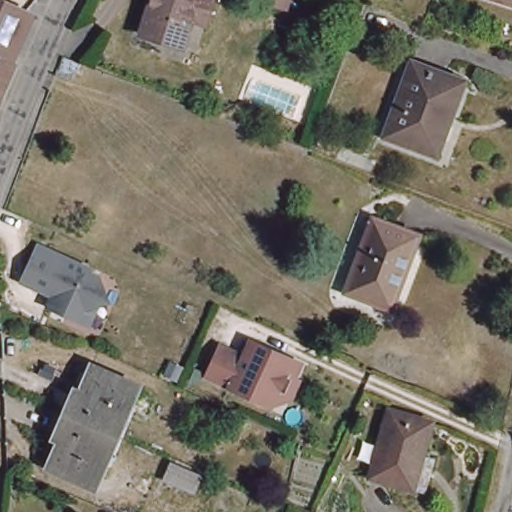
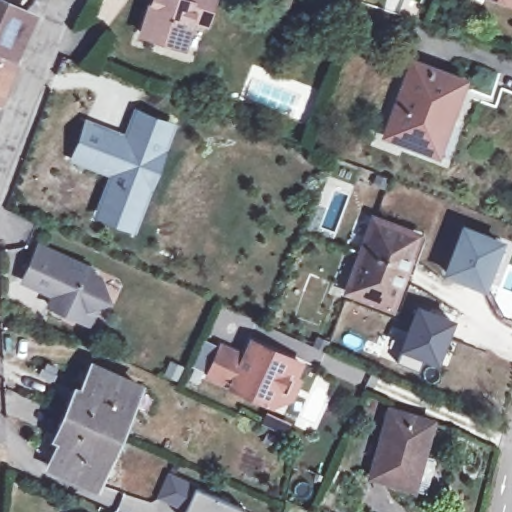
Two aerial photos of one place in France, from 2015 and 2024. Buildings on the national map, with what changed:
unchanged [(6,61),(0,59),(0,0),(1,0),(28,12),(6,61)]
unchanged [(210,9),(205,24),(191,20),(183,48),(140,35),(151,0),(213,0),(210,9)]
demolished [(262,0),(289,0),(285,9),(261,1),(262,0)]
unchanged [(491,0),(512,0),(512,7),(505,4),(491,0)]
unchanged [(15,64),(0,96),(0,59),(6,61),(15,64)]
unchanged [(423,149),(385,135),(411,63),(464,81),(450,116),(437,154),(423,149)]
new [(122,129),(131,106),(177,123),(151,190),(155,191),(139,235),(90,218),(106,176),(68,162),(84,116),(122,129)]
unchanged [(356,270),(374,221),(415,237),(397,288),(390,307),(348,291),(356,270)]
new [(499,242),(482,286),(446,272),(462,228),(499,242)]
unchanged [(80,315),(48,300),(55,288),(23,274),(38,241),(89,264),(87,267),(98,272),(103,285),(97,299),(88,318),(80,315)]
new [(417,307),(451,320),(444,338),(441,337),(433,360),(423,356),(418,370),(396,362),(417,307)]
unchanged [(289,401),(275,395),(271,404),(207,376),(221,345),(244,355),(250,340),(301,362),(293,379),(298,381),(289,401)]
unchanged [(76,389),(80,391),(91,366),(138,386),(116,436),(66,414),(72,399),(76,389)]
unchanged [(425,493),(413,490),(370,477),(388,412),(431,424),(423,455),(435,459),(425,493)]
unchanged [(95,486),(50,467),(61,440),(56,437),(60,428),(66,414),(116,436),(95,486)]
demolished [(172,463),(200,476),(193,490),(166,478),(172,463)]
new [(157,494),(166,475),(195,488),(244,509),(243,512),(184,512),(186,507),(157,494)]
demolished [(279,512),(211,512),(223,485),(279,512)]

